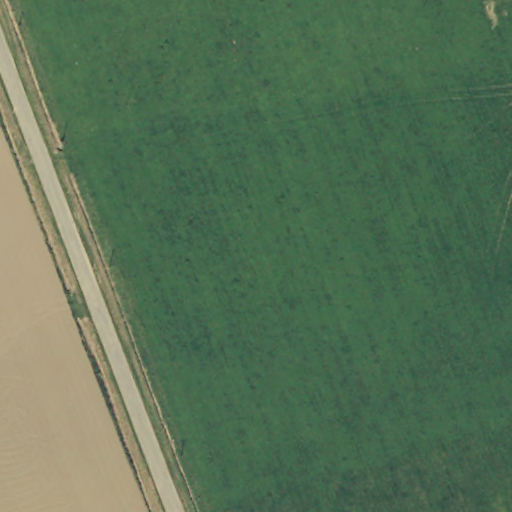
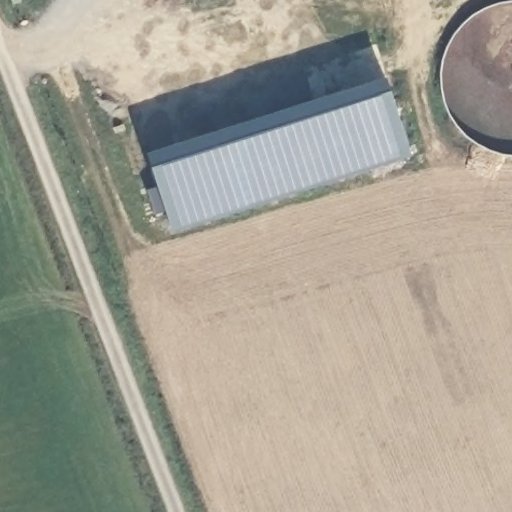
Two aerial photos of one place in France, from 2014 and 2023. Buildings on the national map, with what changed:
new [(174,234),(147,156),(387,77),(412,156),(174,234)]

